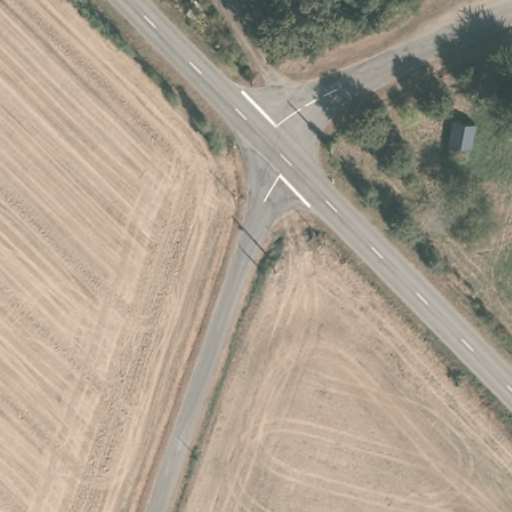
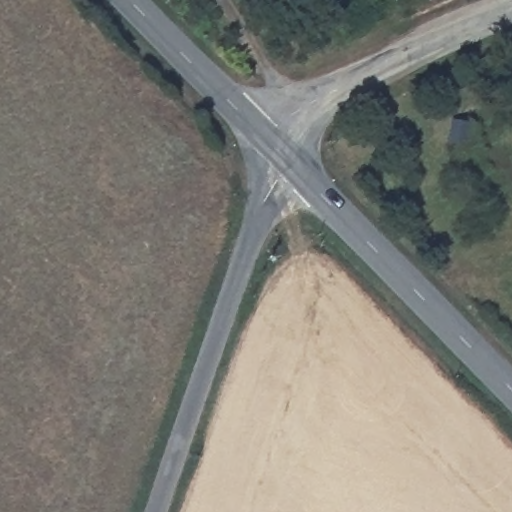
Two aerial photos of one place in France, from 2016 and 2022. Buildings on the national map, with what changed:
unchanged [(470,140),(465,139),(465,143),(463,146),(461,149),(457,149),(453,149),(450,146),(449,144),(449,139),(449,137),(447,136),(453,110),(476,115),(470,140)]

